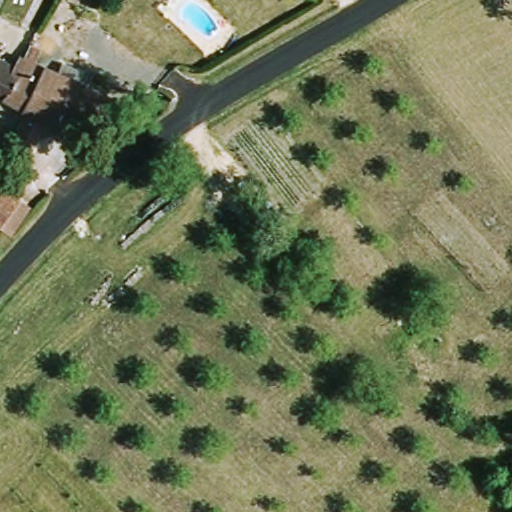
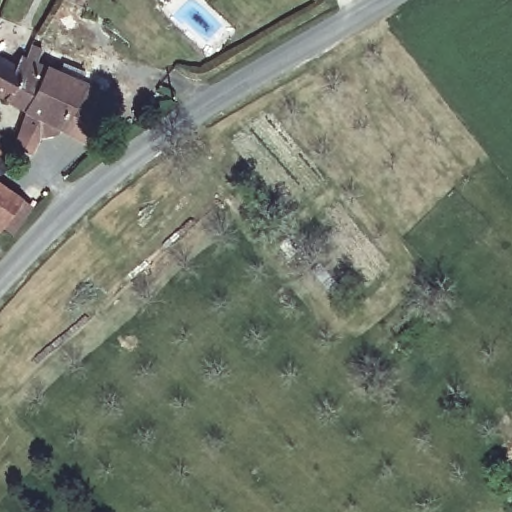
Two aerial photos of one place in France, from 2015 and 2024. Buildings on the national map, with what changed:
unchanged [(48,129),(18,113),(0,103),(0,66),(9,71),(16,57),(21,60),(39,68),(54,75),(58,64),(80,74),(76,85),(98,97),(75,142),(48,129)]

